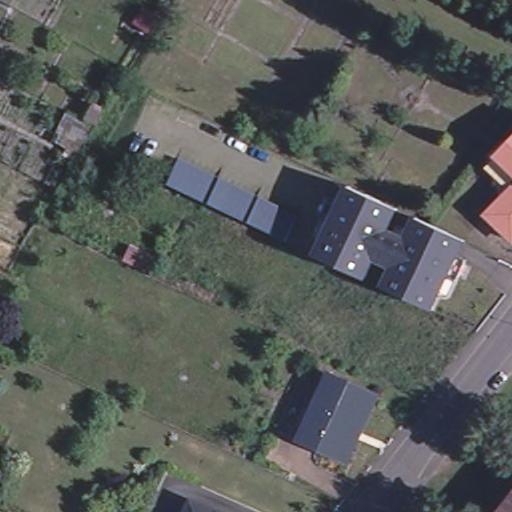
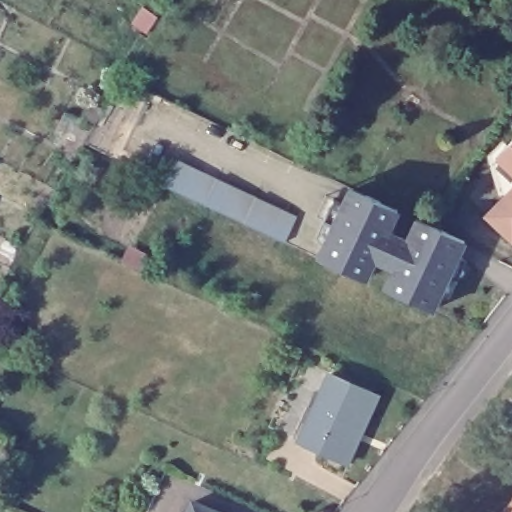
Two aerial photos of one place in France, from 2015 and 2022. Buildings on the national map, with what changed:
unchanged [(497,152),(512,137),(512,168),(497,152)]
unchanged [(181,158),(301,217),(289,243),(255,227),(168,185),(181,158)]
unchanged [(364,276),(316,253),(333,219),(324,214),(324,212),(333,194),(342,199),(349,184),(349,183),(398,206),(390,222),(388,227),(407,236),(409,231),(417,215),(464,237),(463,240),(457,254),(466,258),(457,278),(447,273),(431,308),(424,305),(383,285),(393,264),(374,255),(364,276)]
unchanged [(486,212),(512,186),(512,238),(486,212)]
unchanged [(364,437),(354,460),(304,437),(314,416),(335,371),(377,390),(378,391),(359,435),(364,437)]
unchanged [(196,502),(217,512),(191,512),(196,502)]
unchanged [(512,508),(512,512),(509,512),(512,508)]

